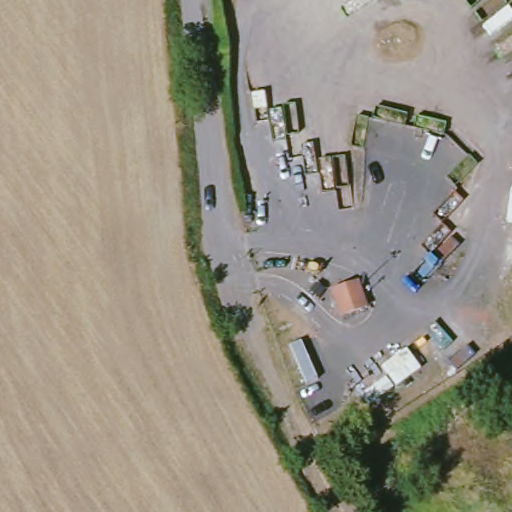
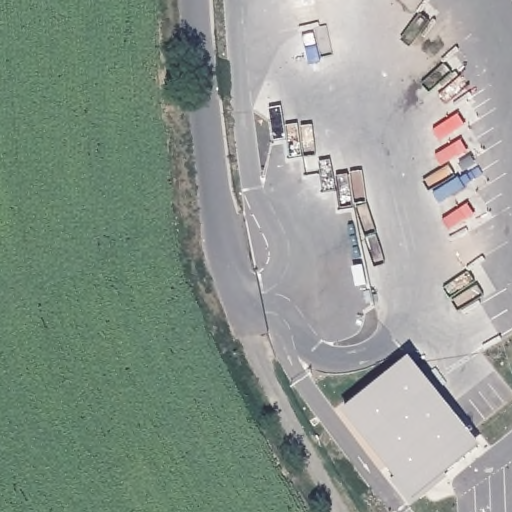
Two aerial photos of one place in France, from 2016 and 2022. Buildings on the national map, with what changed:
demolished [(357,280),(368,307),(339,320),(329,295),(357,280)]
new [(445,472),(449,476),(413,502),(392,477),(396,475),(344,410),(411,355),(480,445),(445,472)]

